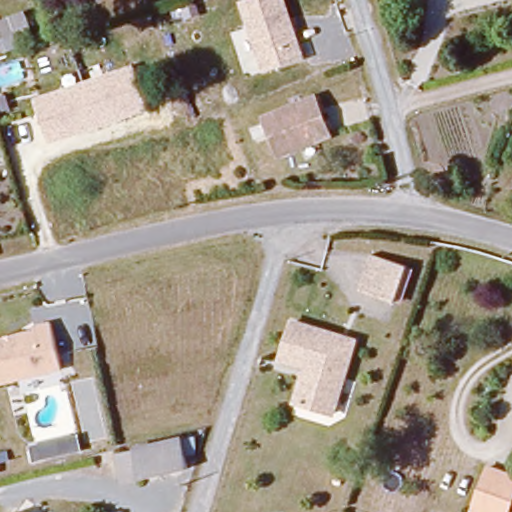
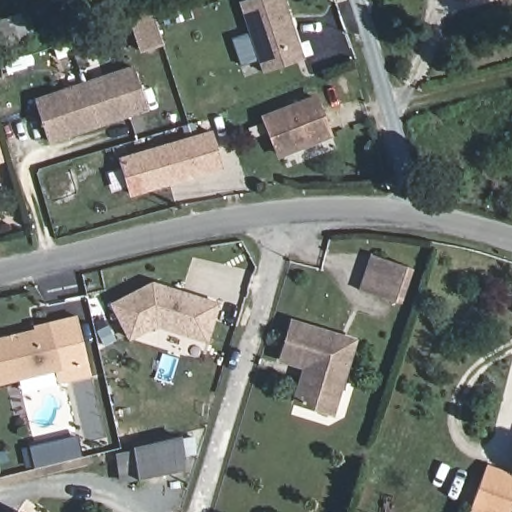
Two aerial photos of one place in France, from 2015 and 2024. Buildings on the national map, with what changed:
unchanged [(249,0),(287,0),(306,58),(264,72),(239,4),(249,0)]
unchanged [(36,42),(2,54),(0,48),(0,16),(26,10),(36,42)]
new [(157,16),(167,48),(145,55),(135,24),(157,16)]
unchanged [(135,66),(148,109),(52,142),(35,99),(135,66)]
unchanged [(326,140),(277,156),(263,120),(312,104),(326,140)]
new [(215,134),(225,167),(131,196),(122,162),(215,134)]
unchanged [(374,253),(405,263),(392,302),(361,291),(374,253)]
new [(166,286),(174,288),(221,302),(210,339),(159,324),(133,338),(115,303),(155,282),(166,286)]
unchanged [(32,328),(30,324),(49,319),(61,371),(0,385),(0,336),(32,328)]
unchanged [(354,341),(335,415),(296,403),(304,369),(280,362),(290,321),(354,341)]
new [(80,436),(84,453),(35,464),(32,447),(80,436)]
unchanged [(178,440),(184,469),(140,481),(133,451),(178,440)]
unchanged [(135,477),(119,481),(114,452),(129,449),(135,477)]
unchanged [(512,487),(502,512),(477,512),(471,510),(486,469),(512,480),(512,487)]
unchanged [(21,512),(16,512),(18,510),(21,512)]

